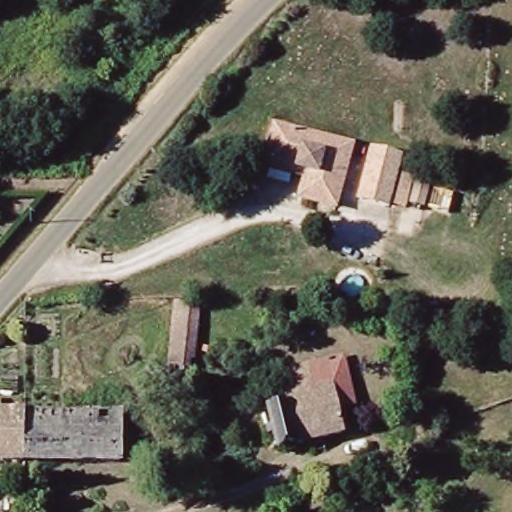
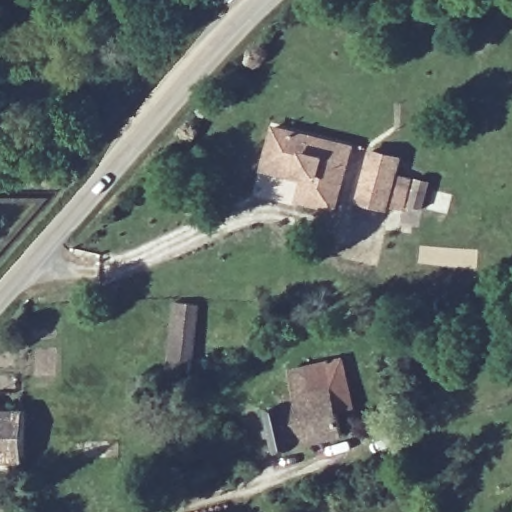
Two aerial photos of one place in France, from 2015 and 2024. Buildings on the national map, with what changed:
unchanged [(264,160),(277,120),(361,148),(339,217),(300,204),(309,175),(264,160)]
unchanged [(409,157),(405,176),(418,181),(410,212),(360,199),(374,151),(409,157)]
unchanged [(177,306),(202,306),(200,362),(175,361),(177,306)]
unchanged [(342,356),(350,382),(332,387),(310,393),(303,367),(342,356)]
unchanged [(332,387),(344,431),(278,449),(267,411),(294,404),(285,371),(303,367),(310,393),(332,387)]
unchanged [(0,462),(0,414),(17,415),(17,462),(0,462)]
demolished [(113,415),(114,461),(17,462),(17,415),(113,415)]

